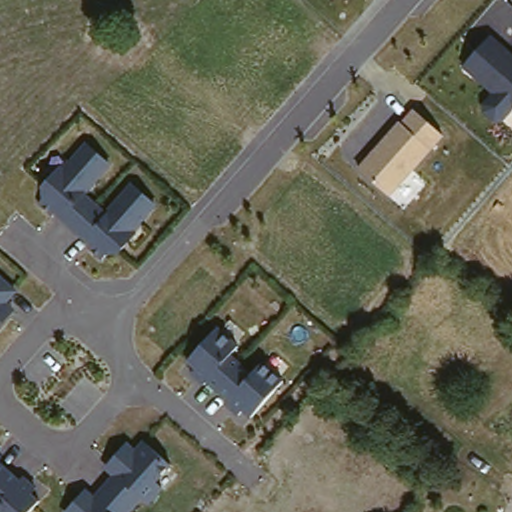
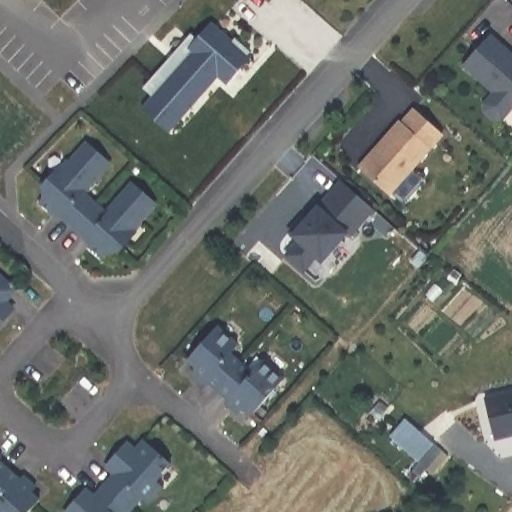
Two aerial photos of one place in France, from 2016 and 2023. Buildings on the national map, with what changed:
new [(144,110),(156,95),(148,87),(208,22),(234,43),(238,40),(250,52),(239,66),(243,70),(229,85),(221,76),(171,133),(144,110)]
unchanged [(512,54),(512,112),(503,122),(494,125),(481,114),(481,105),(492,92),(463,67),(491,36),(512,54)]
unchanged [(357,169),(414,108),(444,136),(390,197),(357,169)]
unchanged [(157,203),(136,230),(139,232),(118,255),(102,258),(41,205),(41,187),(67,159),(71,162),(86,142),(113,165),(90,194),(108,208),(129,182),(157,203)]
new [(353,235),(349,232),(338,247),(334,244),(310,272),(291,257),(303,245),(293,235),(307,220),(317,228),(328,216),(319,208),(344,186),(373,212),(353,235)]
unchanged [(19,291),(11,302),(18,308),(0,330),(0,274),(19,291)]
unchanged [(240,345),(234,353),(254,370),(263,360),(286,380),(251,416),(245,412),(241,416),(226,404),(229,400),(208,381),(205,385),(190,373),(194,368),(187,362),(218,327),(240,345)]
new [(512,396),(512,436),(495,440),(486,402),(512,396)]
new [(411,423),(433,443),(416,462),(393,441),(411,423)]
unchanged [(134,512),(78,512),(144,439),(177,466),(134,512)]
unchanged [(5,457),(1,462),(22,478),(25,475),(39,487),(36,491),(43,498),(31,512),(0,512),(0,453),(5,457)]

